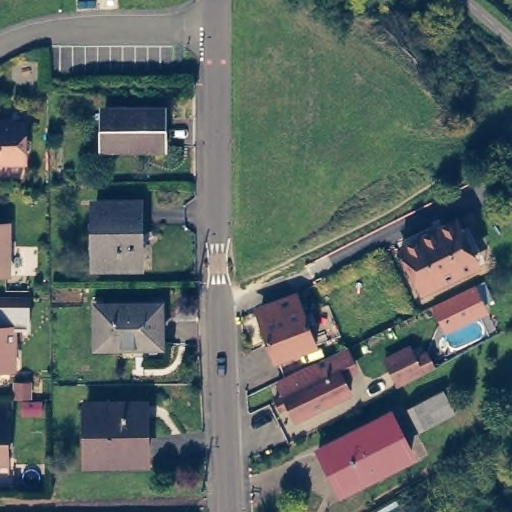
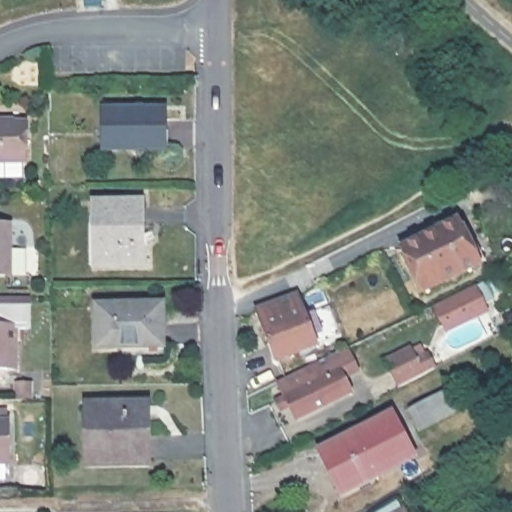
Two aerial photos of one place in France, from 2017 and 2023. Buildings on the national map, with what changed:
unchanged [(162,106),(162,146),(105,147),(105,108),(162,106)]
unchanged [(0,153),(0,114),(31,114),(32,153),(0,153)]
unchanged [(134,270),(92,270),(92,209),(134,209),(134,270)]
unchanged [(455,219),(460,229),(477,263),(422,292),(399,249),(455,219)]
unchanged [(0,271),(0,220),(10,220),(10,271),(0,271)]
unchanged [(432,306),(476,285),(489,314),(446,334),(432,306)]
unchanged [(22,323),(16,323),(16,366),(0,366),(0,293),(22,293),(22,323)]
unchanged [(160,294),(161,333),(135,334),(136,340),(96,341),(95,295),(160,294)]
unchanged [(324,345),(284,360),(272,328),(276,326),(270,310),(306,298),(324,345)]
unchanged [(277,396),(287,391),(280,377),(321,357),(337,349),(348,344),(355,359),(342,364),(354,389),(299,416),(292,401),(282,406),(277,396)]
unchanged [(383,359),(399,351),(405,362),(424,352),(432,367),(397,386),(389,371),(383,359)]
unchanged [(30,386),(30,397),(16,397),(16,386),(30,386)]
unchanged [(409,407),(443,387),(453,412),(421,429),(409,407)]
unchanged [(150,405),(151,464),(91,466),(91,406),(150,405)]
unchanged [(6,422),(8,422),(9,462),(0,462),(0,412),(6,412),(6,422)]
unchanged [(395,416),(416,454),(350,489),(329,450),(395,416)]
unchanged [(396,503),(402,512),(382,512),(396,503)]

